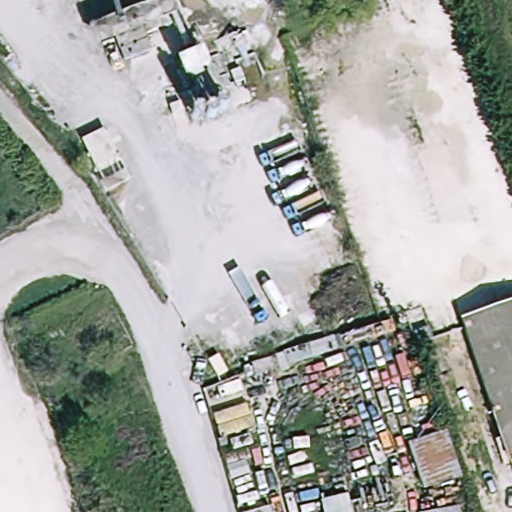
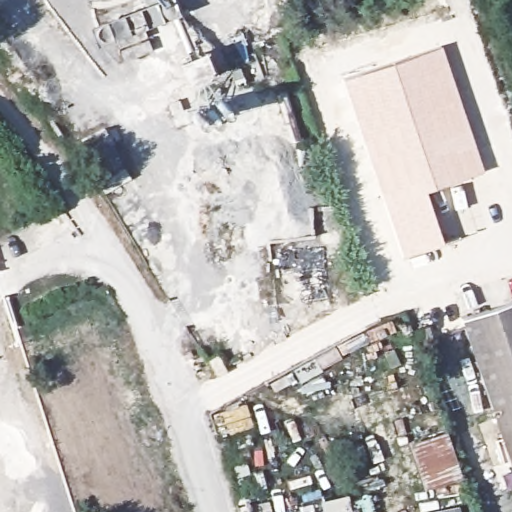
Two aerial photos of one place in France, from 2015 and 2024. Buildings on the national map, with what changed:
unchanged [(157,0),(177,0),(182,17),(102,45),(93,24),(157,0)]
new [(426,190),(443,244),(402,257),(342,79),(440,44),(482,170),(426,190)]
unchanged [(86,139),(112,130),(125,157),(100,166),(86,139)]
unchanged [(465,322),(512,304),(512,450),(465,322)]
unchanged [(208,416),(244,407),(250,430),(216,443),(208,416)]
new [(408,441),(448,430),(462,477),(421,488),(408,441)]
new [(319,502),(347,493),(348,500),(370,493),(375,512),(322,512),(319,502)]

